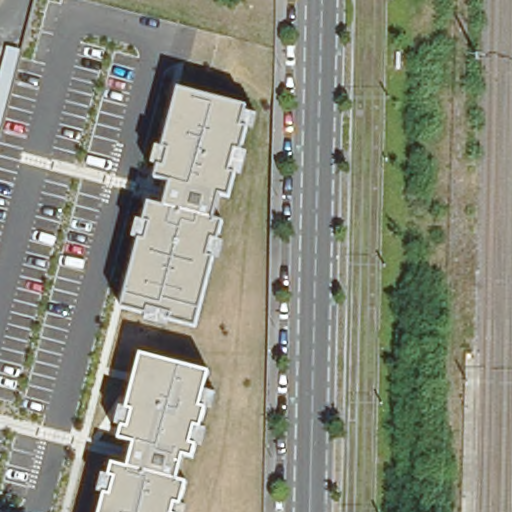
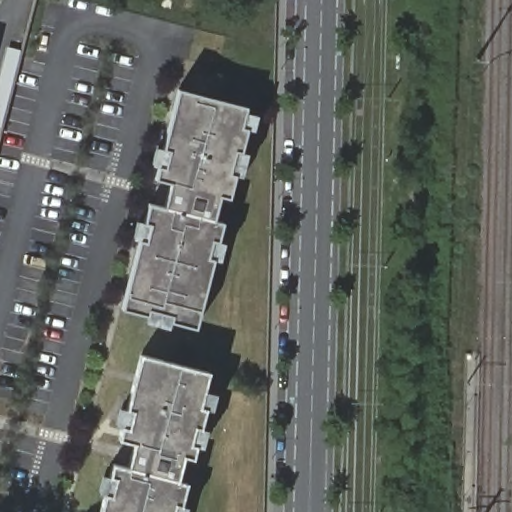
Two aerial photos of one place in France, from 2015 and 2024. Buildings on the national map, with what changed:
unchanged [(248,108),(247,112),(259,115),(255,132),(249,131),(243,152),(249,154),(243,178),(237,176),(231,200),(221,198),(215,221),(223,224),(218,240),(227,243),(222,262),(213,260),(197,327),(170,320),(169,328),(147,322),(149,315),(122,308),(140,240),(133,238),(138,219),(145,221),(148,205),(164,209),(172,180),(156,176),(159,165),(152,164),(157,145),(162,145),(179,90),(248,108)]
unchanged [(205,391),(217,394),(213,411),(205,408),(201,428),(208,430),(204,447),(196,446),(193,458),(184,455),(177,480),(187,483),(181,505),(189,507),(187,512),(101,512),(106,496),(99,493),(104,475),(111,478),(114,465),(130,468),(136,445),(121,440),(123,429),(116,426),(120,407),(128,410),(142,355),(210,373),(205,391)]

